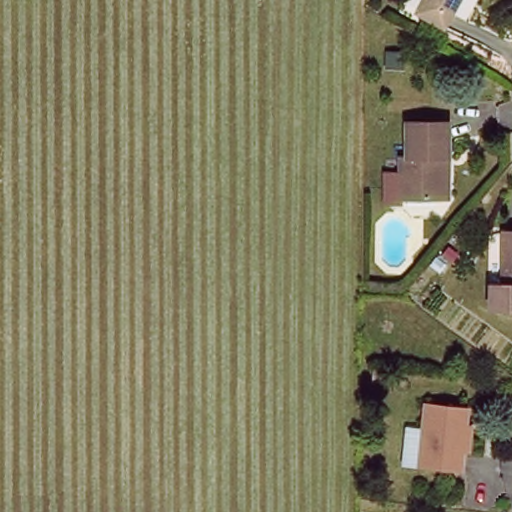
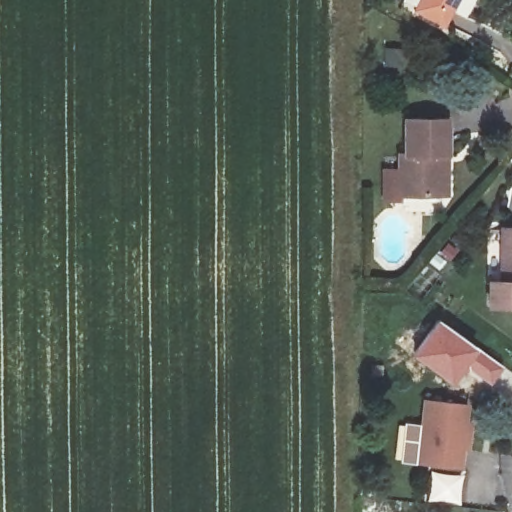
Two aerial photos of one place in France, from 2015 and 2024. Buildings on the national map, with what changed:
unchanged [(439,26),(409,8),(413,0),(452,0),(439,26)]
unchanged [(409,157),(417,157),(417,119),(457,119),(456,156),(449,156),(449,196),(410,197),(410,201),(392,202),(392,171),(409,171),(409,157)]
unchanged [(485,302),(486,280),(499,280),(503,227),(512,227),(512,303),(485,302)]
new [(491,385),(463,365),(451,382),(412,355),(437,317),(476,346),(504,366),(491,385)]
unchanged [(416,425),(431,426),(433,402),(471,405),(467,460),(429,458),(413,457),(416,425)]

